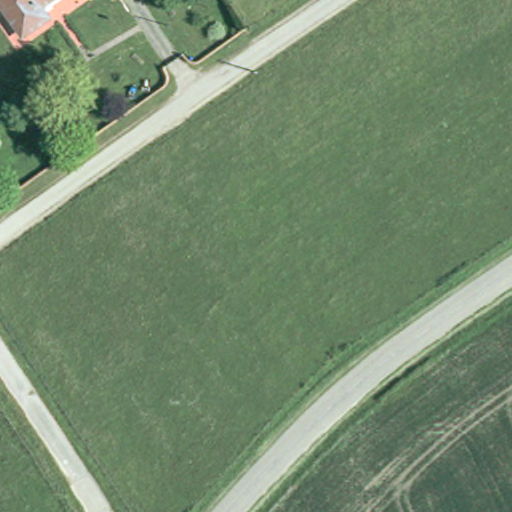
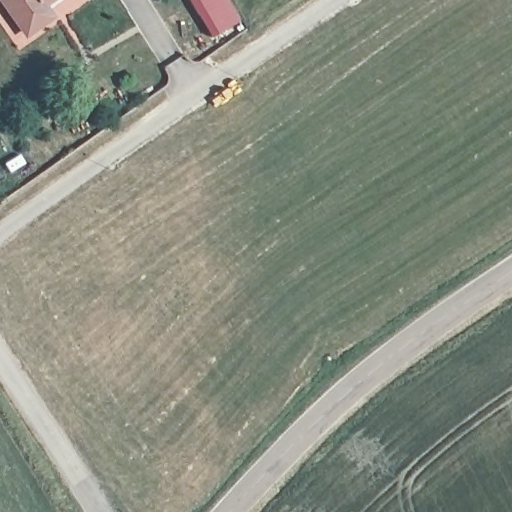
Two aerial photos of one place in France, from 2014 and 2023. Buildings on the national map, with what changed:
unchanged [(0,13),(0,0),(83,0),(23,44),(0,13)]
new [(217,34),(196,0),(227,0),(239,21),(217,34)]

